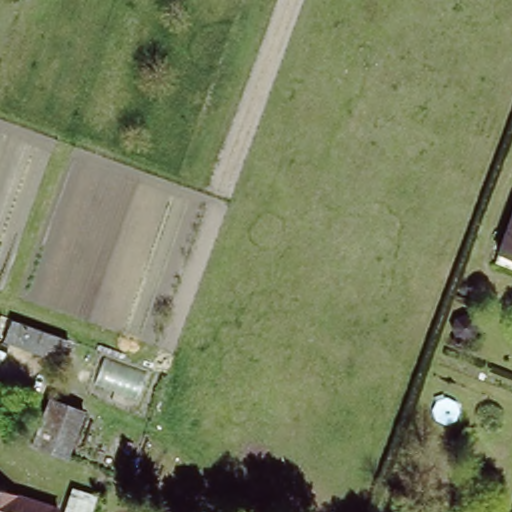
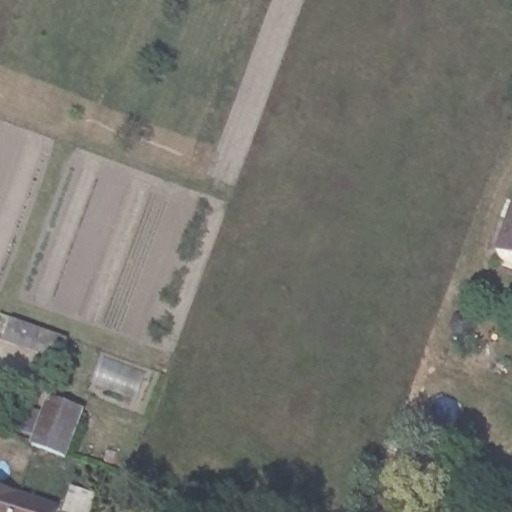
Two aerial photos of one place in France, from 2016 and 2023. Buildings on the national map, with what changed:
unchanged [(498,255),(512,220),(512,260),(498,255)]
unchanged [(65,337),(57,358),(5,339),(11,319),(65,337)]
unchanged [(86,412),(67,463),(36,451),(52,398),(86,412)]
unchanged [(62,512),(0,512),(0,488),(62,511),(62,512)]

